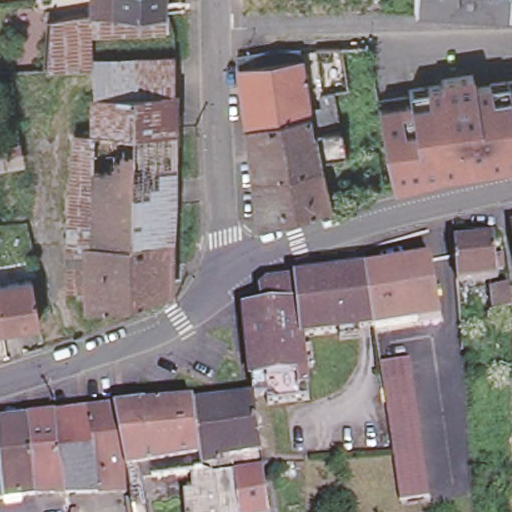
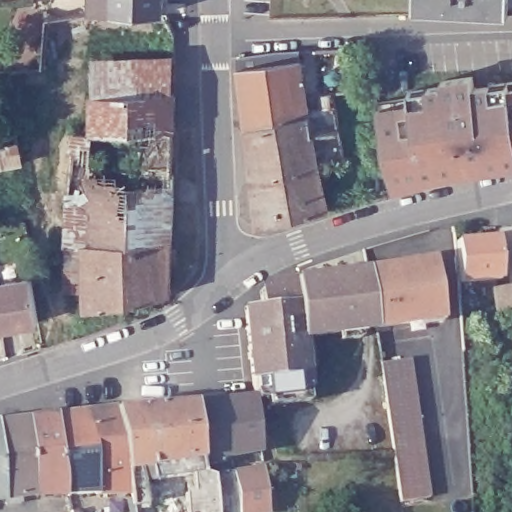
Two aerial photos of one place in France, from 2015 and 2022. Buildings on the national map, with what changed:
unchanged [(162,5),(161,14),(90,14),(90,0),(167,0),(167,5),(162,5)]
unchanged [(305,0),(305,17),(247,15),(247,0),(305,0)]
unchanged [(305,0),(362,0),(362,18),(305,17),(305,0)]
unchanged [(415,0),(512,0),(512,11),(510,11),(510,12),(415,9),(415,0)]
unchanged [(90,14),(161,14),(161,32),(90,34),(92,58),(173,53),(173,94),(91,97),(88,72),(41,70),(43,18),(90,14)]
unchanged [(250,175),(244,129),(235,58),(273,53),(273,62),(280,62),(280,52),(312,51),(314,64),(300,66),(307,108),(319,106),(317,94),(330,92),(336,128),(312,132),(317,163),(250,175)]
unchanged [(440,176),(391,190),(383,151),(375,102),(407,97),(406,91),(440,86),(439,81),(471,76),(473,87),(512,81),(512,165),(447,174),(440,176)]
unchanged [(163,298),(84,312),(84,289),(62,287),(65,245),(73,133),(90,133),(91,97),(173,94),(170,239),(167,296),(163,298)]
unchanged [(250,175),(317,163),(327,207),(327,209),(256,229),(250,175)]
unchanged [(512,226),(512,229),(511,226),(512,226)]
unchanged [(490,238),(492,263),(497,263),(498,269),(493,269),(494,278),(453,281),(450,242),(490,238)]
unchanged [(432,261),(441,319),(375,330),(366,271),(432,261)]
unchanged [(302,328),(247,334),(245,310),(261,308),(260,293),(268,283),(281,281),(366,271),(375,330),(303,337),(302,328)]
unchanged [(0,329),(0,326),(0,283),(30,278),(37,323),(0,329)]
unchanged [(507,309),(489,312),(486,288),(505,286),(507,309)]
unchanged [(247,334),(302,328),(303,337),(306,375),(251,380),(247,334)]
unchanged [(392,451),(380,365),(409,361),(429,498),(400,502),(392,451)]
unchanged [(252,390),(251,380),(306,375),(310,402),(268,406),(266,389),(252,390)]
unchanged [(253,398),(255,398),(261,451),(230,456),(223,402),(253,398)]
unchanged [(223,402),(230,456),(223,457),(223,463),(202,466),(195,405),(223,402)]
unchanged [(198,499),(196,475),(131,485),(130,476),(116,410),(147,408),(194,404),(195,405),(202,466),(203,474),(215,475),(235,472),(240,512),(200,512),(198,499)]
unchanged [(116,410),(130,476),(131,485),(132,492),(98,494),(65,495),(57,417),(116,410)]
unchanged [(29,420),(57,417),(65,495),(38,496),(29,420)]
unchanged [(0,429),(0,423),(29,420),(38,496),(6,500),(0,429)]
unchanged [(6,500),(0,501),(0,429),(6,500)]
unchanged [(268,512),(240,512),(235,472),(263,469),(268,512)]

